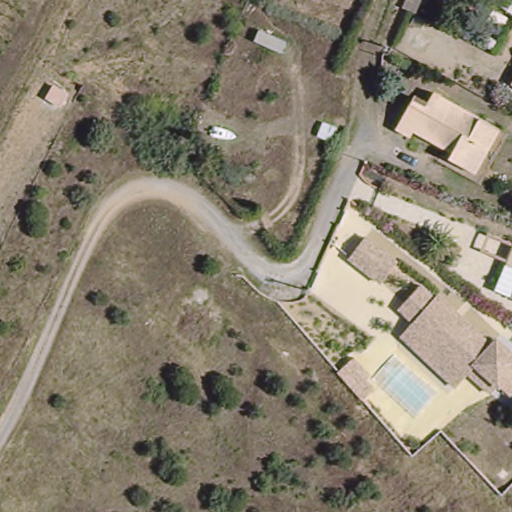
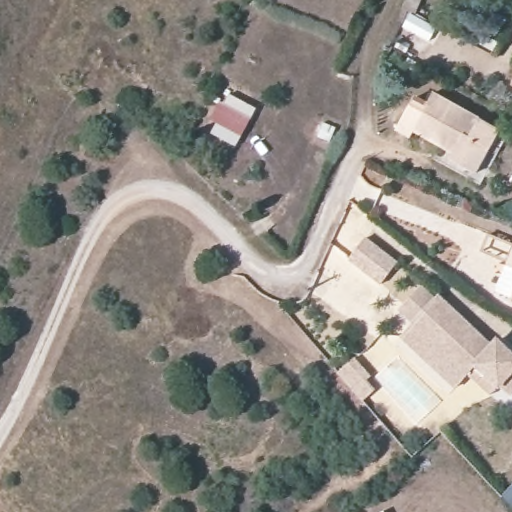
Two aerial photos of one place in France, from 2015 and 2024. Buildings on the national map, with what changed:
unchanged [(408,9),(402,5),(404,0),(420,0),(416,13),(408,9)]
unchanged [(501,6),(504,0),(512,0),(512,13),(501,6)]
new [(236,145),(209,131),(215,119),(211,118),(221,100),(224,102),(229,92),(257,107),(236,145)]
unchanged [(414,132),(411,138),(396,130),(414,97),(427,103),(433,92),(499,127),(475,172),(449,158),(451,153),(445,149),(414,132)]
unchanged [(382,284),(349,256),(366,232),(401,262),(382,284)]
unchanged [(512,251),(512,298),(495,291),(506,265),(512,251)]
unchanged [(501,391),(475,365),(458,384),(399,329),(410,317),(400,306),(427,274),(490,338),(496,333),(512,346),(512,378),(501,391)]
unchanged [(503,469),(510,475),(504,481),(498,475),(503,469)]

